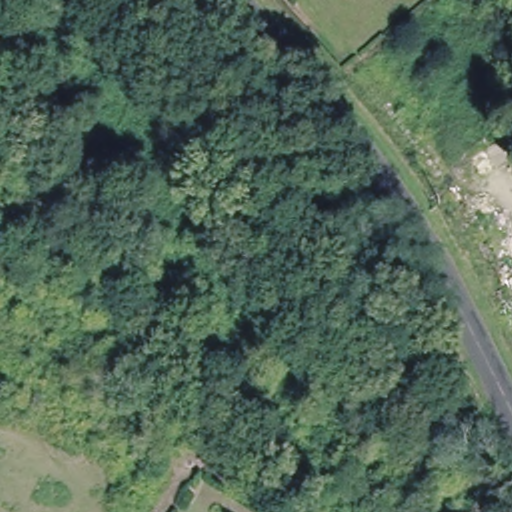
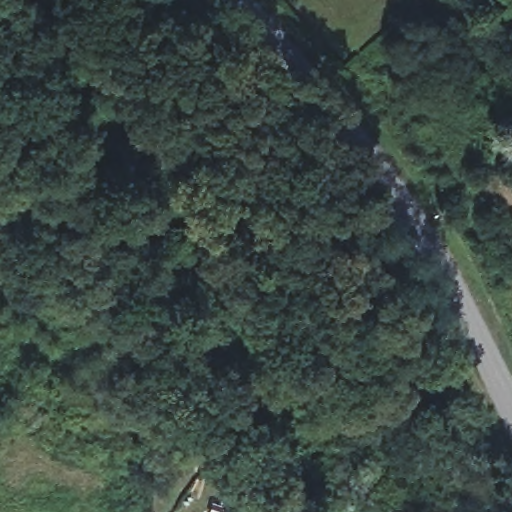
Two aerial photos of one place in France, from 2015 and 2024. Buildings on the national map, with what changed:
unchanged [(512,174),(500,180),(485,152),(512,135),(512,174)]

